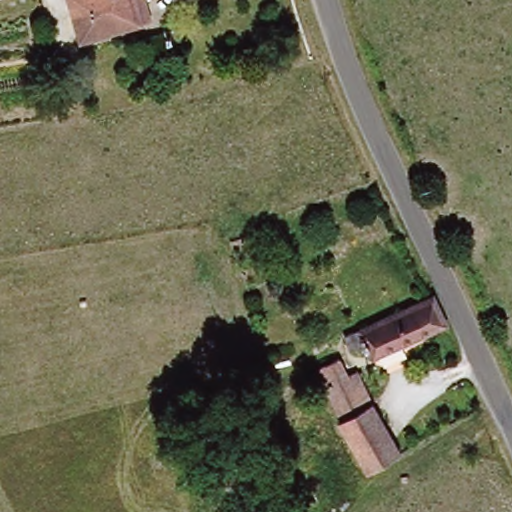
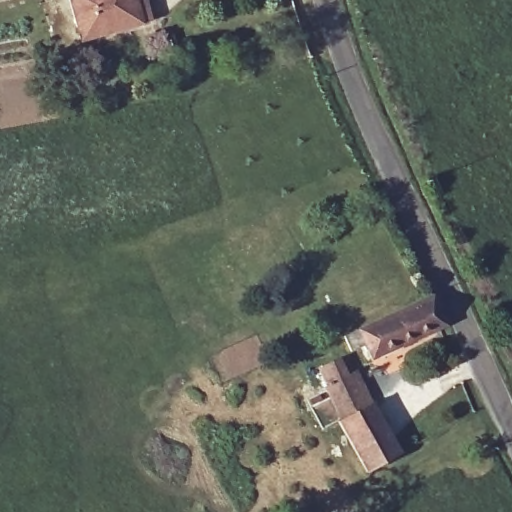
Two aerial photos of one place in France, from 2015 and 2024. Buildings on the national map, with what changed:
unchanged [(67,0),(135,0),(141,21),(68,43),(62,26),(75,23),(67,0)]
unchanged [(355,352),(340,360),(331,345),(430,296),(445,328),(365,370),(355,352)]
unchanged [(355,408),(367,403),(391,444),(394,450),(360,471),(332,417),(336,415),(315,363),(328,358),(336,377),(340,377),(355,408)]

